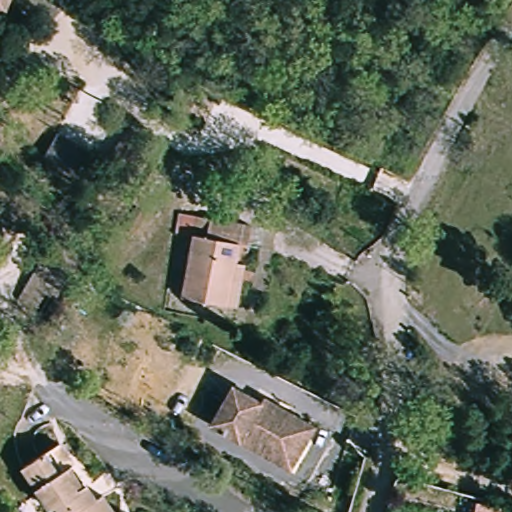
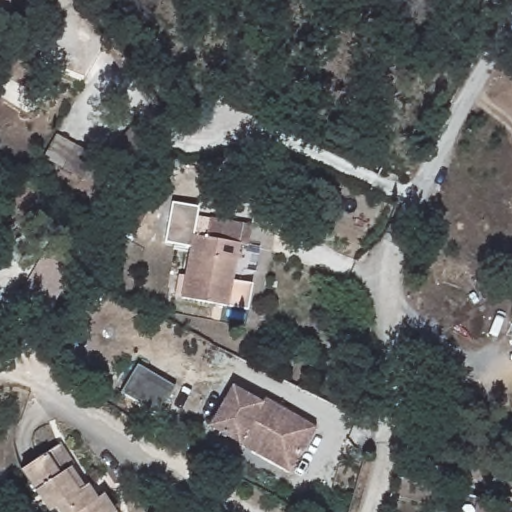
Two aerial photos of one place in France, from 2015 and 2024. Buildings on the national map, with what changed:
unchanged [(0,11),(0,0),(6,0),(2,12),(0,11)]
unchanged [(155,148),(126,182),(103,163),(132,128),(155,148)]
unchanged [(96,155),(83,177),(44,154),(57,132),(96,155)]
unchanged [(234,308),(225,306),(181,298),(192,235),(174,232),(177,213),(196,216),(250,227),(247,246),(237,244),(234,263),(242,264),(234,308)]
unchanged [(82,252),(47,314),(20,298),(55,236),(82,252)]
new [(136,364),(174,386),(158,414),(119,392),(136,364)]
unchanged [(209,426),(231,387),(259,403),(262,398),(313,427),(307,438),(288,471),(209,426)]
unchanged [(85,485),(95,499),(102,495),(112,512),(58,512),(55,507),(49,511),(20,469),(51,449),(59,444),(72,465),(70,467),(83,487),(85,485)]

